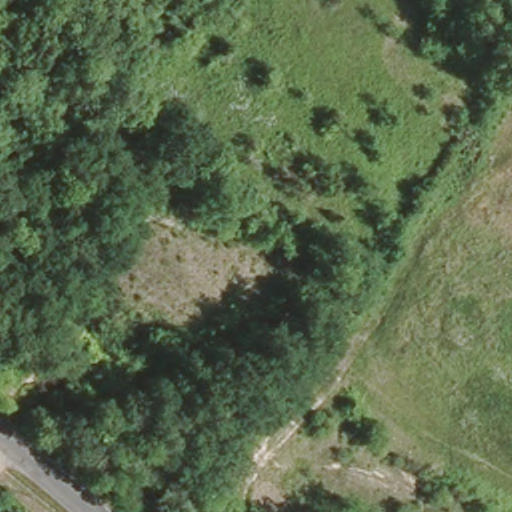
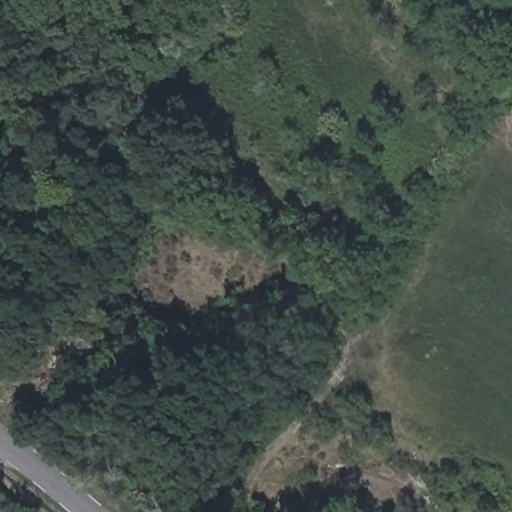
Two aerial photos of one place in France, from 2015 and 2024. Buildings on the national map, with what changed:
[]

